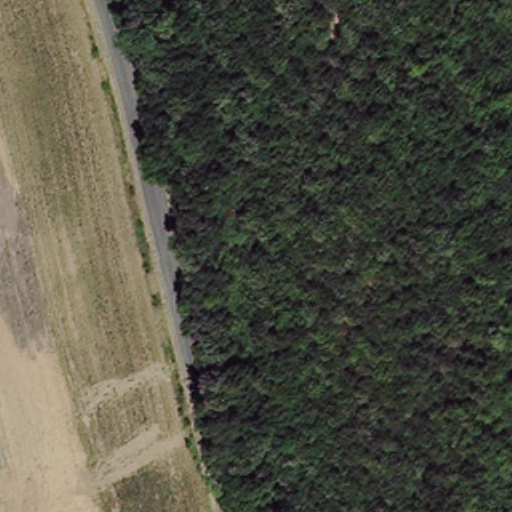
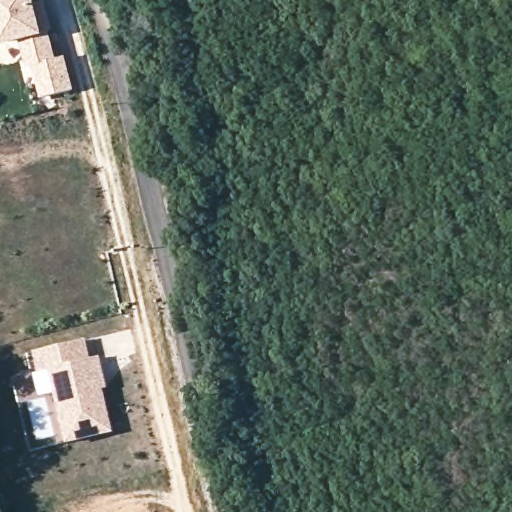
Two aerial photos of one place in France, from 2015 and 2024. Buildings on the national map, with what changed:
new [(37,2),(46,1),(53,27),(50,30),(58,59),(66,55),(75,90),(43,98),(35,67),(28,69),(21,41),(2,46),(0,39),(0,0),(37,0),(37,2)]
new [(65,445),(46,372),(38,374),(32,354),(85,341),(90,360),(100,358),(106,390),(102,390),(112,435),(65,445)]

